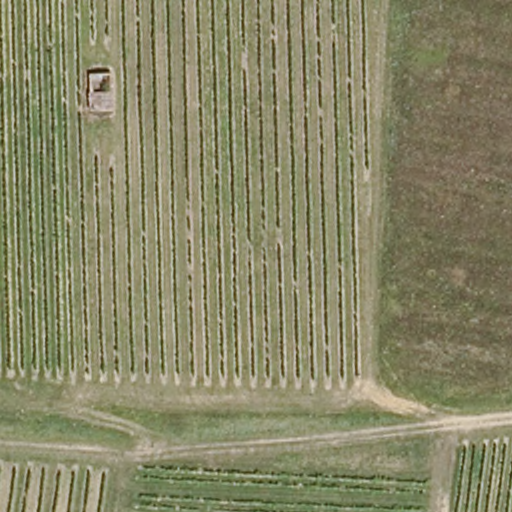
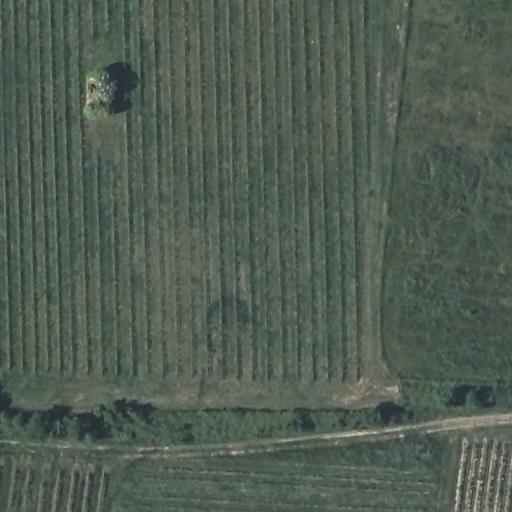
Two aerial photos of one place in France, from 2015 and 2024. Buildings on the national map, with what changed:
unchanged [(112,111),(90,111),(90,74),(112,74),(112,111)]

